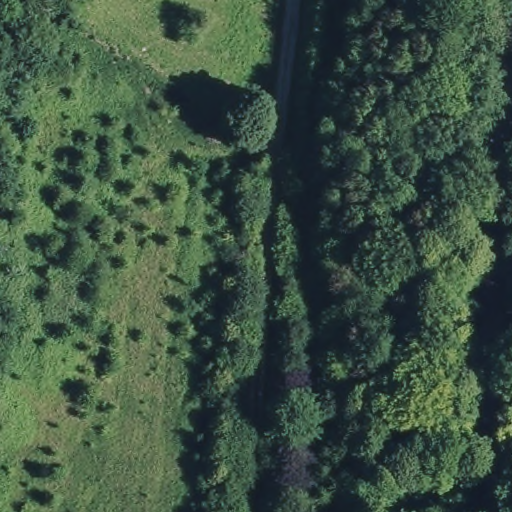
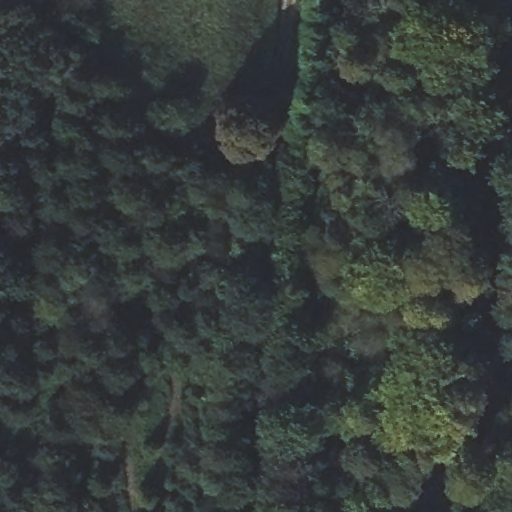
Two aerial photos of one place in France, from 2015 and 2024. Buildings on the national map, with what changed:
unchanged [(511,58),(477,48),(487,0),(512,0),(512,53),(511,58)]

